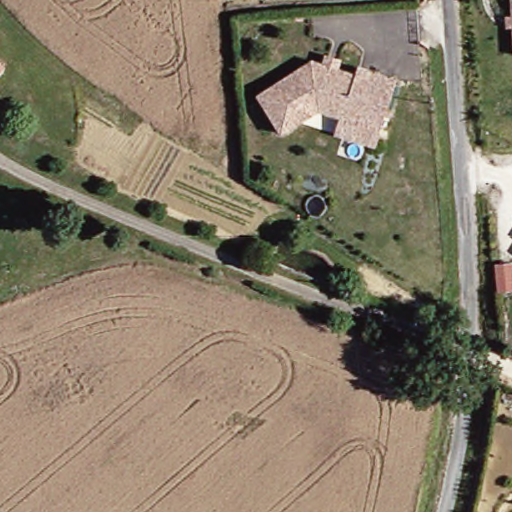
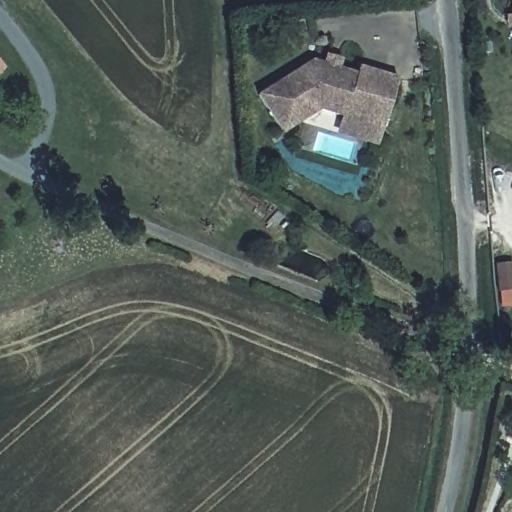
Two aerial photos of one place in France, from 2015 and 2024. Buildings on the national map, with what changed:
unchanged [(506,0),(512,0),(512,59),(510,60),(506,0)]
unchanged [(332,137),(336,121),(318,114),(277,139),(252,99),(308,64),(350,76),(352,70),(392,83),(375,132),(370,150),(332,137)]

